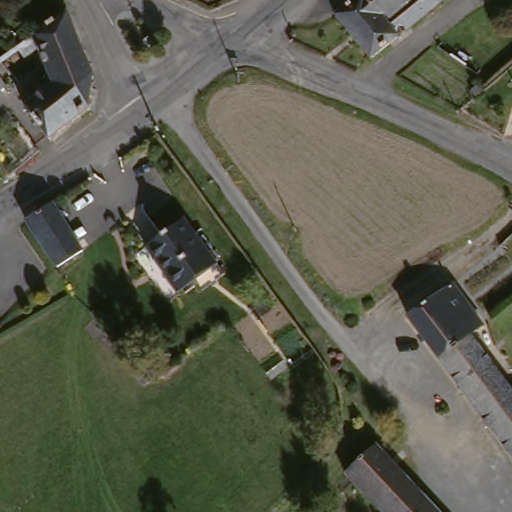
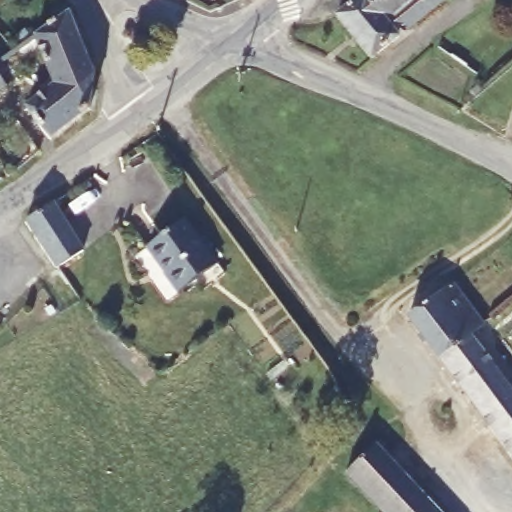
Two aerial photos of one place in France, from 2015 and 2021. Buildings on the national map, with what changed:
unchanged [(369,60),(336,17),(357,0),(442,0),(369,60)]
unchanged [(33,35),(60,17),(66,12),(90,68),(53,86),(33,35)]
unchanged [(53,86),(90,68),(92,73),(88,109),(71,122),(47,91),(53,86)]
unchanged [(4,85),(0,88),(0,80),(4,85)]
unchanged [(48,140),(25,107),(47,91),(71,122),(48,140)]
unchanged [(25,220),(52,203),(82,250),(56,267),(25,220)]
unchanged [(178,297),(173,290),(165,279),(166,278),(146,252),(184,224),(204,250),(217,267),(178,297)]
unchanged [(410,320),(452,289),(483,331),(470,340),(512,396),(512,462),(407,323),(410,320)]
unchanged [(378,512),(345,477),(375,450),(433,512),(378,512)]

